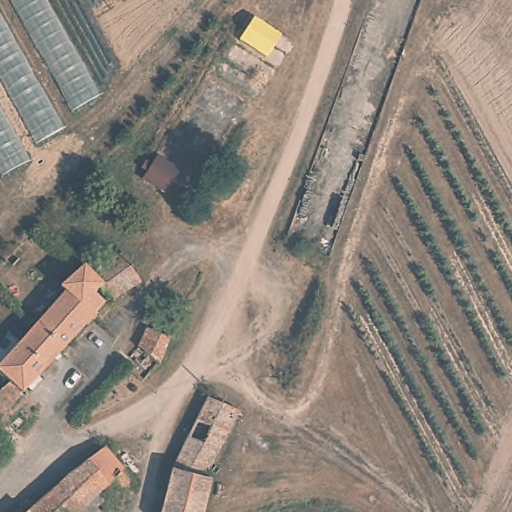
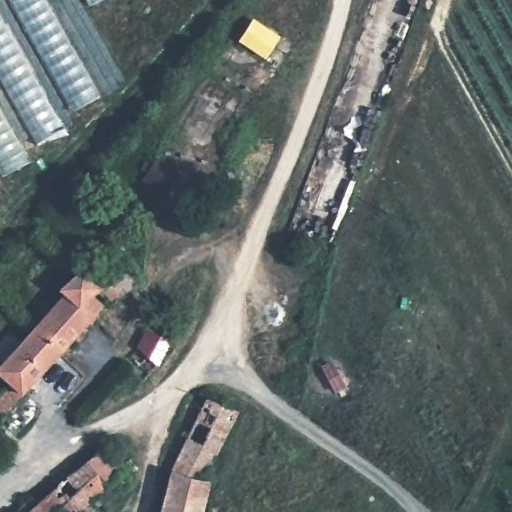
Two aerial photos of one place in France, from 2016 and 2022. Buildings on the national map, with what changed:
unchanged [(101,96),(56,117),(64,129),(22,149),(30,161),(0,175),(0,0),(46,0),(101,96)]
unchanged [(89,5),(86,0),(98,0),(89,5)]
unchanged [(280,36),(268,58),(238,41),(253,17),(280,36)]
unchanged [(180,171),(163,197),(141,183),(158,156),(180,171)]
unchanged [(140,275),(113,292),(104,280),(97,283),(105,297),(0,410),(0,376),(3,372),(0,368),(0,351),(61,283),(59,278),(78,257),(86,261),(119,241),(140,275)]
unchanged [(149,323),(171,334),(160,360),(145,370),(131,348),(140,341),(149,323)]
unchanged [(184,435),(205,393),(238,409),(217,450),(184,435)]
unchanged [(169,466),(184,435),(217,450),(204,478),(169,466)]
unchanged [(125,468),(126,474),(123,479),(118,481),(114,481),(109,478),(108,477),(74,512),(26,512),(97,440),(125,468)]
unchanged [(204,478),(209,480),(202,509),(202,512),(159,512),(169,466),(204,478)]

